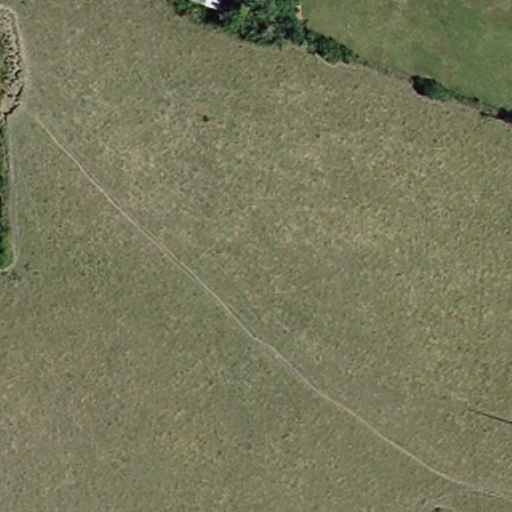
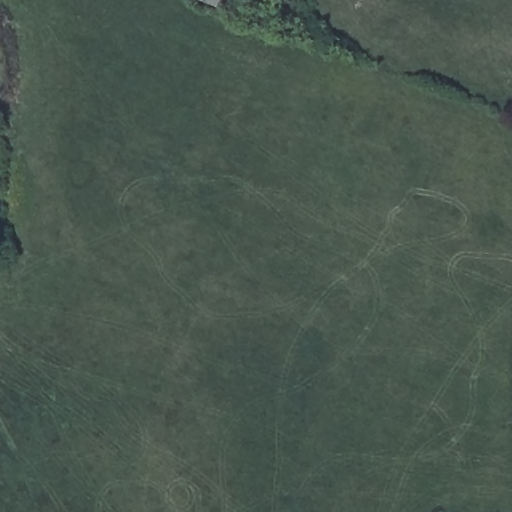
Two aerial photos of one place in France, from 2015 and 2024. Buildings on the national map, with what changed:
unchanged [(224,31),(230,12),(245,18),(241,37),(224,31)]

